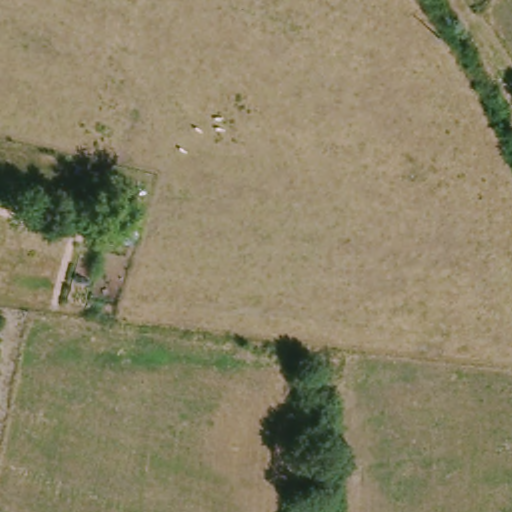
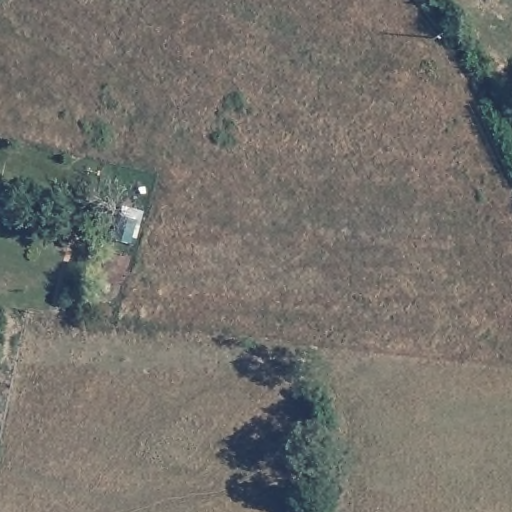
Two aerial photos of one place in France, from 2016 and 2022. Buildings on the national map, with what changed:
unchanged [(114,239),(121,216),(136,221),(128,244),(114,239)]

